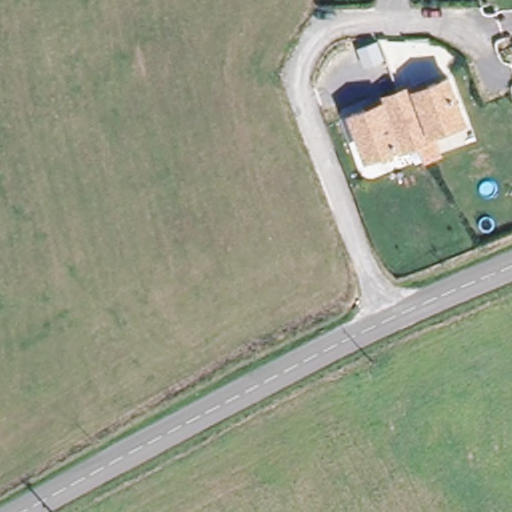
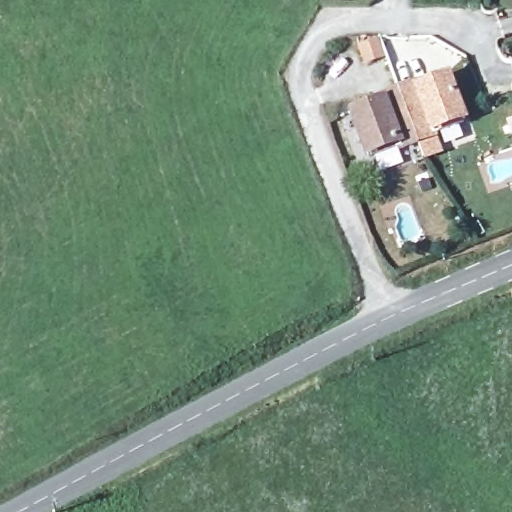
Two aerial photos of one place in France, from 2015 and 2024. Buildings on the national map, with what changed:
unchanged [(434,131),(436,137),(419,143),(399,93),(417,86),(418,90),(448,78),(464,119),(434,131)]
unchanged [(402,150),(400,144),(369,157),(353,117),(383,105),(381,100),(399,93),(419,143),(402,150)]

